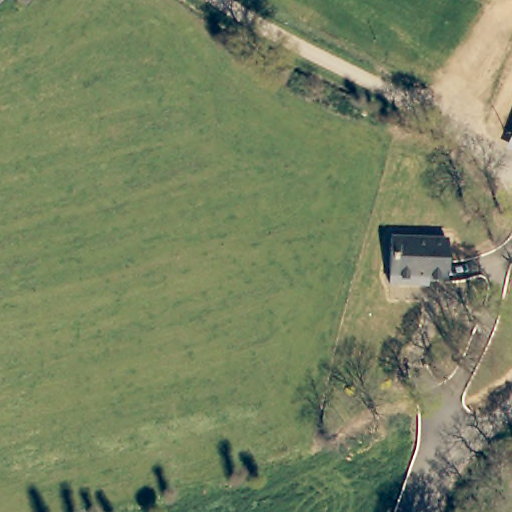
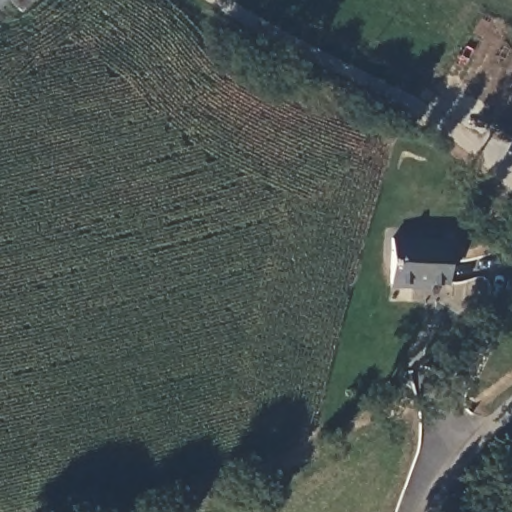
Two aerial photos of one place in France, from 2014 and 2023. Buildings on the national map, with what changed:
unchanged [(0,5),(0,0),(6,0),(0,5)]
unchanged [(23,7),(17,0),(31,0),(23,7)]
unchanged [(512,153),(512,154),(511,154),(512,153)]
unchanged [(443,237),(443,281),(418,280),(418,288),(389,285),(390,235),(443,237)]

